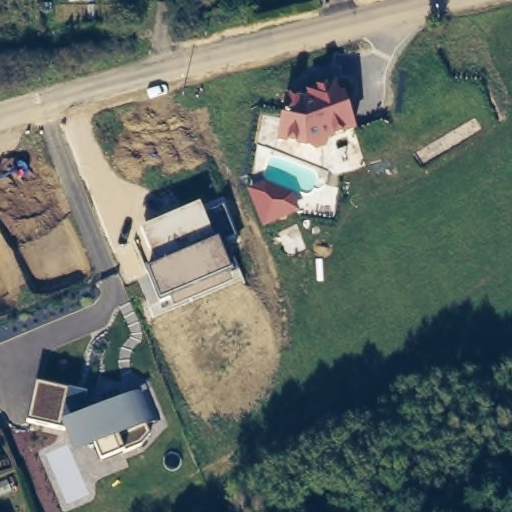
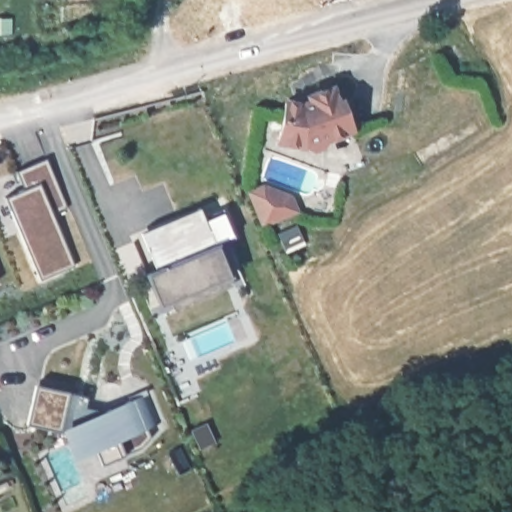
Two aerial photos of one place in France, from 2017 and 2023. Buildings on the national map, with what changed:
unchanged [(317,150),(273,141),(283,96),(300,99),(305,97),(304,93),(334,81),(356,133),(317,150)]
new [(17,171),(31,165),(47,158),(68,208),(53,214),(75,267),(42,281),(6,197),(25,189),(17,171)]
unchanged [(260,227),(245,190),(266,182),(292,193),(301,213),(260,227)]
unchanged [(221,206),(235,236),(225,240),(238,271),(226,277),(230,285),(171,310),(166,299),(160,302),(146,271),(153,267),(138,232),(197,207),(200,214),(221,206)]
unchanged [(145,426),(149,434),(142,444),(125,452),(119,438),(90,448),(84,436),(31,423),(41,382),(87,396),(85,404),(105,408),(146,391),(158,420),(145,426)]

